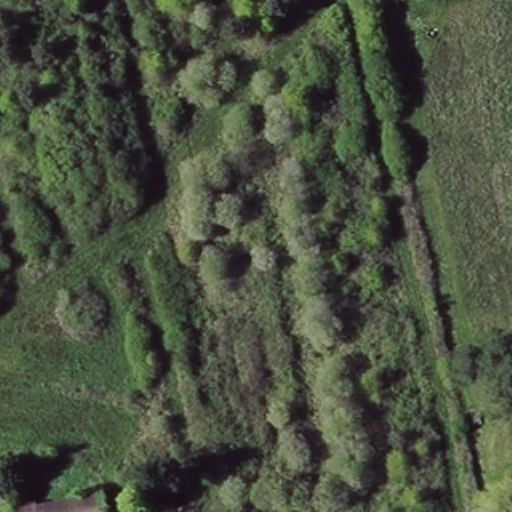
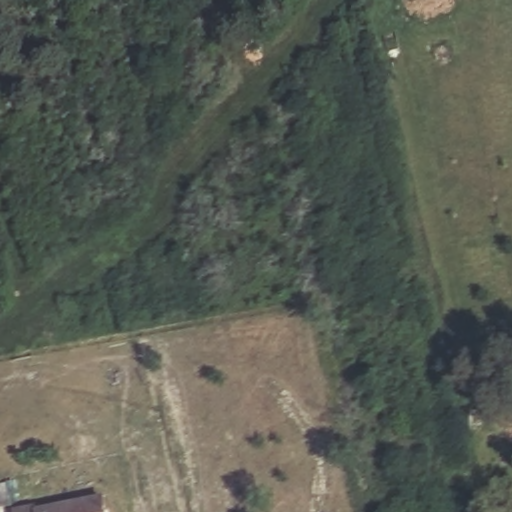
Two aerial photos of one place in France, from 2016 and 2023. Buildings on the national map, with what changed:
unchanged [(0,512),(0,486),(12,483),(15,512),(0,512)]
unchanged [(110,512),(26,512),(26,509),(47,508),(109,502),(110,512)]

